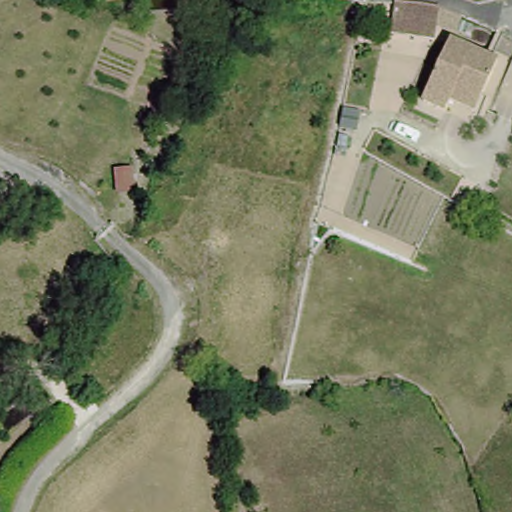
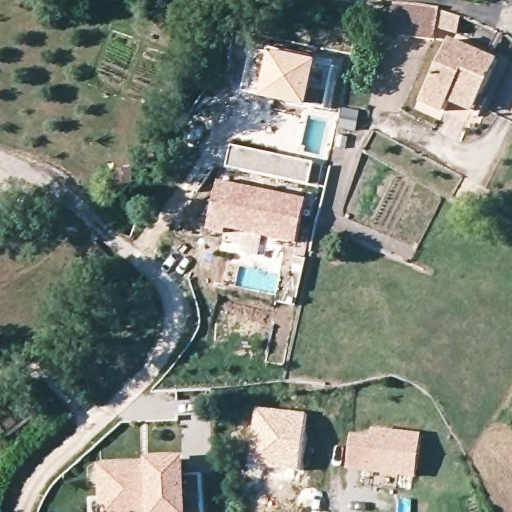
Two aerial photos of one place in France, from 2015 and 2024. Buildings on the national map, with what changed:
unchanged [(421,6),(441,9),(434,43),(391,35),(394,4),(421,6)]
unchanged [(444,107),(440,117),(417,106),(444,45),(493,66),(476,103),(469,117),(444,107)]
new [(266,48),(316,59),(306,107),(256,96),(266,48)]
new [(229,143),(314,161),(309,183),(225,166),(229,143)]
new [(222,182),(310,199),(302,242),(231,228),(229,234),(213,231),(222,182)]
unchanged [(258,252),(258,270),(241,270),(241,251),(258,252)]
new [(256,406),(306,413),(300,470),(246,465),(256,406)]
new [(371,435),(373,427),(422,433),(417,478),(348,470),(351,433),(371,435)]
new [(153,461),(186,459),(187,474),(206,473),(208,512),(156,512),(156,507),(147,508),(147,512),(108,512),(105,467),(153,464),(153,461)]

